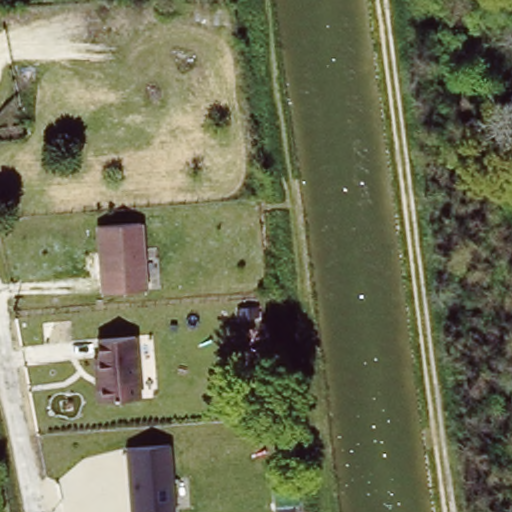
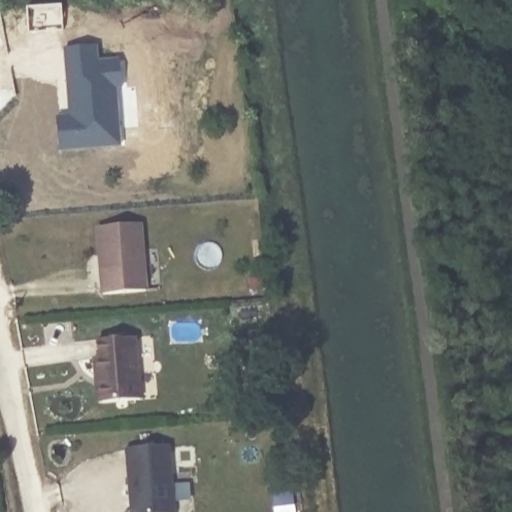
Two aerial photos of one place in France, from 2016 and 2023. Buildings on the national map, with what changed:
new [(101,150),(60,151),(58,119),(73,118),(73,111),(71,109),(70,92),(71,91),(68,49),(98,46),(99,63),(122,61),(124,90),(118,90),(120,130),(121,149),(101,150)]
unchanged [(142,218),(145,285),(103,286),(99,220),(142,218)]
unchanged [(136,332),(141,393),(101,396),(95,338),(136,332)]
unchanged [(171,443),(176,512),(131,512),(125,447),(171,443)]

